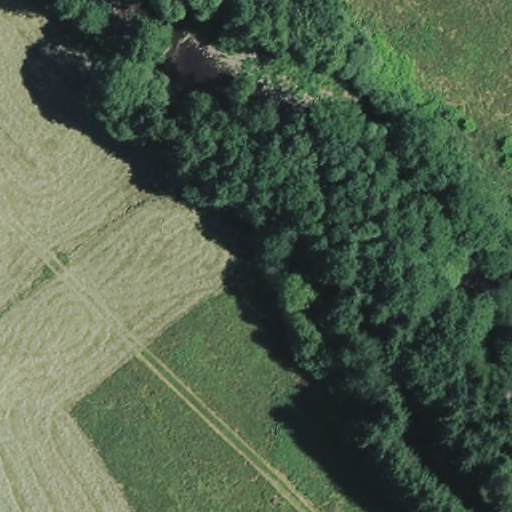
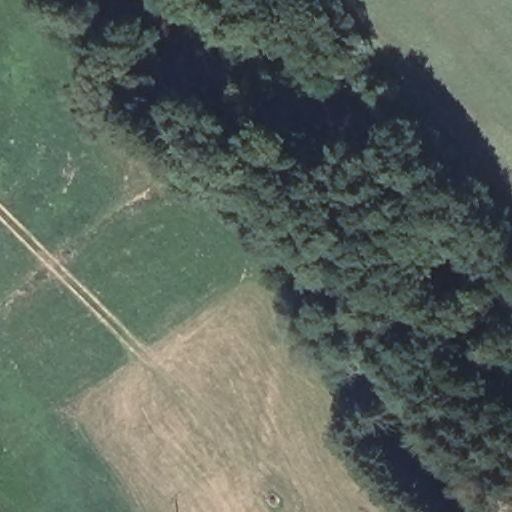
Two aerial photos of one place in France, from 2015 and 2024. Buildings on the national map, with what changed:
unchanged [(477,504),(482,498),(492,488),(512,508),(512,512),(469,512),(473,507),(477,504)]

